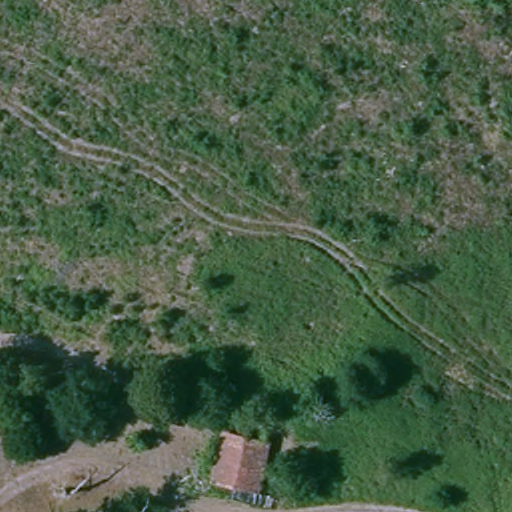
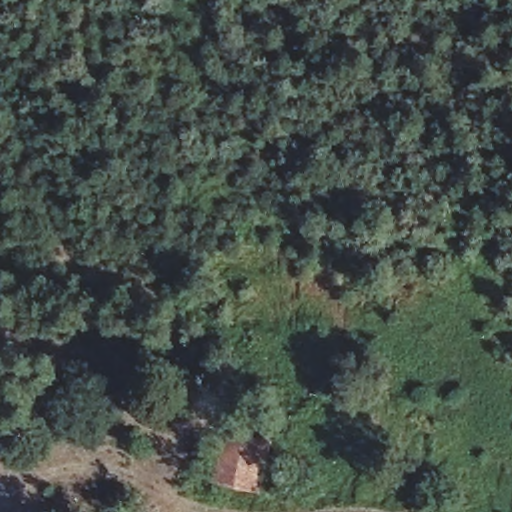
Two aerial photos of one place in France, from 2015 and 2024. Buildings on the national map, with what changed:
unchanged [(8,436),(0,434),(0,395),(14,397),(8,436)]
unchanged [(265,490),(219,482),(227,432),(272,439),(265,490)]

